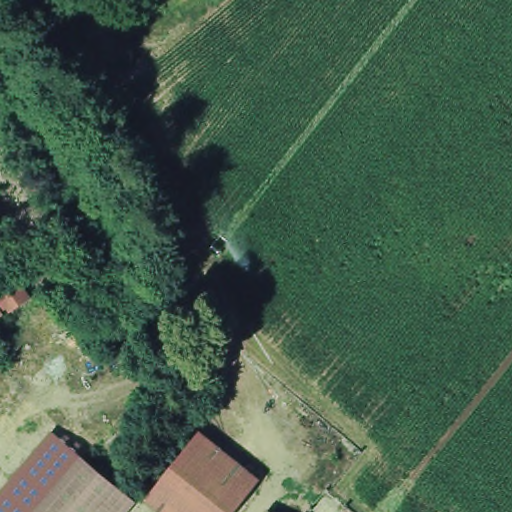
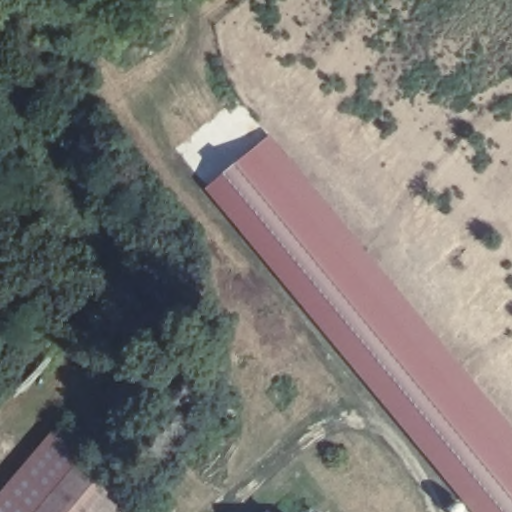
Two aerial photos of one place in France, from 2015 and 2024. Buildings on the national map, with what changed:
new [(512,422),(512,512),(476,512),(204,189),(270,134),(512,422)]
unchanged [(5,275),(8,280),(23,268),(28,275),(13,287),(23,298),(4,313),(0,308),(0,279),(5,275)]
new [(140,497),(127,512),(112,512),(122,500),(86,470),(51,512),(0,512),(0,491),(52,430),(140,497)]
demolished [(233,512),(173,512),(149,492),(197,438),(254,487),(233,512)]
unchanged [(112,512),(51,512),(86,470),(122,500),(112,512)]

